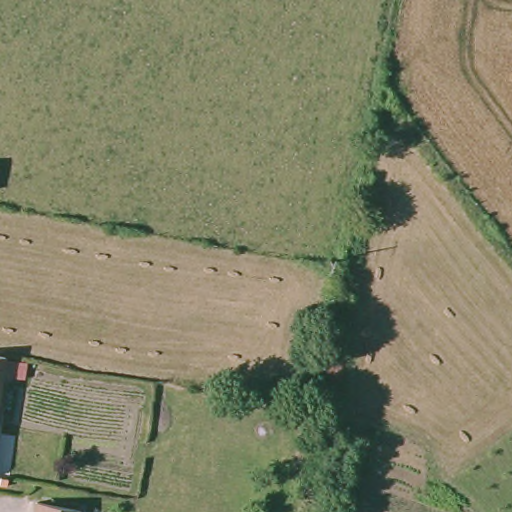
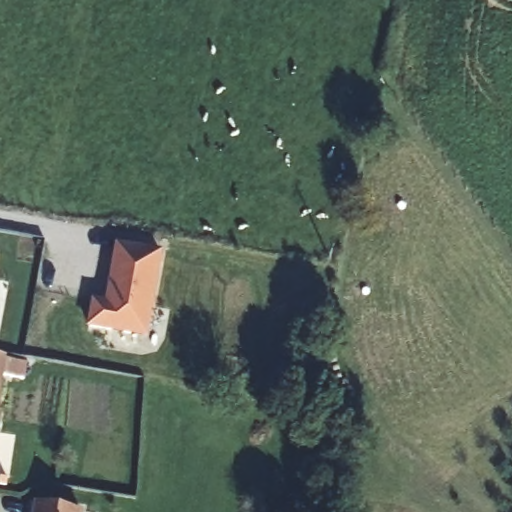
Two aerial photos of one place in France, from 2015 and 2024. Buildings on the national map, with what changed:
new [(163,251),(147,339),(91,329),(97,299),(104,300),(115,243),(163,251)]
unchanged [(0,385),(0,356),(4,357),(0,385)]
unchanged [(66,512),(35,512),(36,506),(66,512)]

